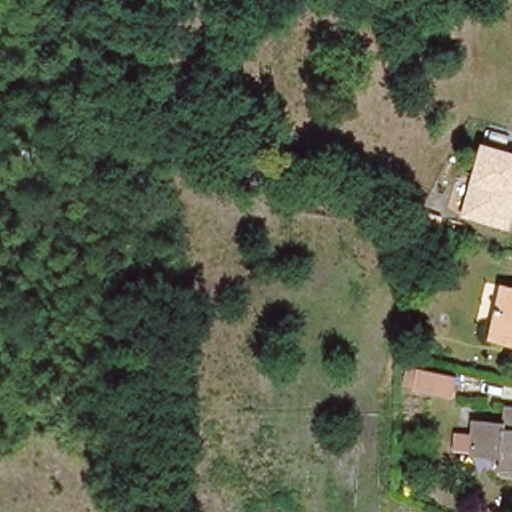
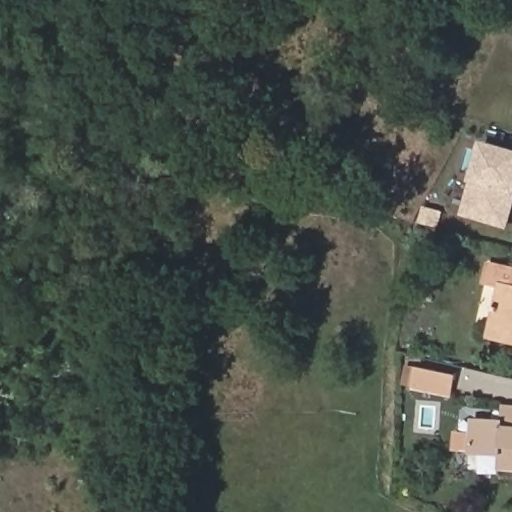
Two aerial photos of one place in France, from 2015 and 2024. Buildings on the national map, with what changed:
unchanged [(510,229),(461,216),(483,144),(512,152),(512,221),(510,229)]
unchanged [(493,323),(503,281),(512,283),(512,337),(491,333),(493,323)]
unchanged [(400,363),(409,366),(412,354),(436,360),(433,372),(452,377),(447,400),(395,387),(400,363)]
unchanged [(471,450),(473,419),(504,421),(505,407),(512,407),(512,465),(502,465),(503,452),(471,450)]
unchanged [(468,451),(449,448),(450,431),(470,432),(468,451)]

